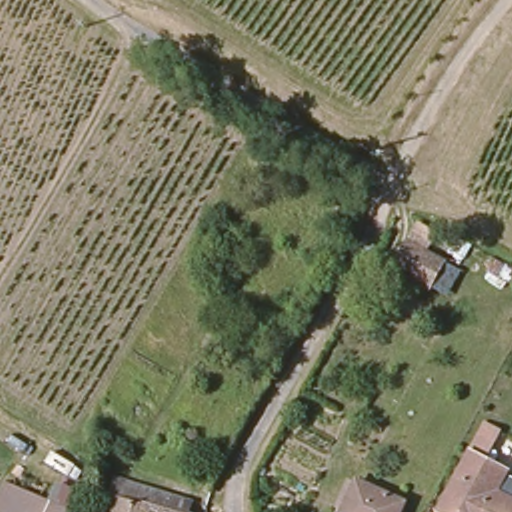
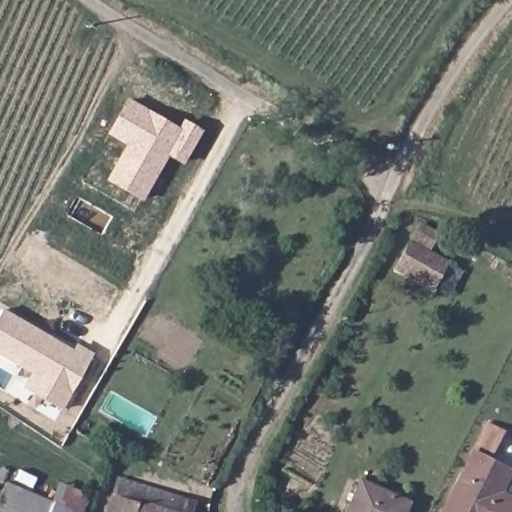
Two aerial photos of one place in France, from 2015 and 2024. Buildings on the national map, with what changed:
new [(182,165),(168,156),(142,201),(105,180),(124,145),(106,134),(128,97),(179,127),(183,119),(203,130),(182,165)]
unchanged [(435,283),(419,274),(398,262),(414,235),(423,219),(443,231),(457,240),(449,255),(451,256),(435,283)]
new [(61,409),(21,387),(30,371),(0,355),(0,312),(2,308),(73,348),(76,343),(93,353),(61,409)]
unchanged [(469,448),(484,421),(498,429),(485,457),(508,468),(497,489),(512,496),(504,512),(445,512),(438,508),(469,448)]
unchanged [(345,512),(361,482),(405,505),(401,512),(345,512)]
unchanged [(68,512),(0,512),(0,492),(1,488),(68,512)]
unchanged [(123,503),(125,503),(131,491),(153,497),(183,510),(183,512),(109,512),(113,500),(123,503)]
unchanged [(512,496),(512,512),(504,512),(512,496)]

